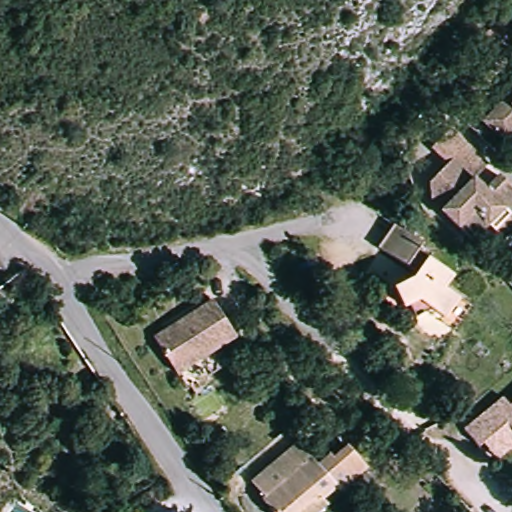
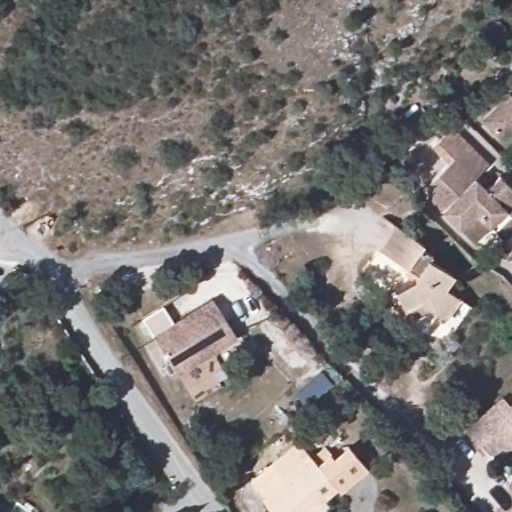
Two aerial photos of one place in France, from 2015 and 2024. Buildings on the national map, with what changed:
unchanged [(502,29),(505,32),(507,36),(495,45),(492,42),(490,39),(502,29)]
unchanged [(483,120),(509,93),(512,97),(512,130),(502,139),(483,120)]
unchanged [(488,220),(472,236),(431,195),(430,176),(447,158),(432,141),(450,123),(485,157),(471,171),(485,185),(500,171),(512,183),(512,224),(502,234),(494,226),(488,220)]
unchanged [(455,322),(443,313),(432,305),(415,313),(409,301),(403,304),(393,283),(413,273),(415,268),(379,243),(395,220),(422,239),(420,242),(430,250),(429,254),(452,269),(442,282),(458,292),(470,300),(455,322)]
unchanged [(171,363),(148,327),(208,290),(231,326),(207,341),(217,356),(181,379),(171,363)]
unchanged [(478,446),(464,429),(502,397),(510,406),(512,404),(512,444),(495,458),(482,443),(478,446)]
unchanged [(312,512),(276,512),(261,494),(263,492),(251,476),(298,437),(318,460),(330,449),(334,454),(349,442),(365,461),(338,485),(335,481),(322,492),(328,499),(312,512)]

